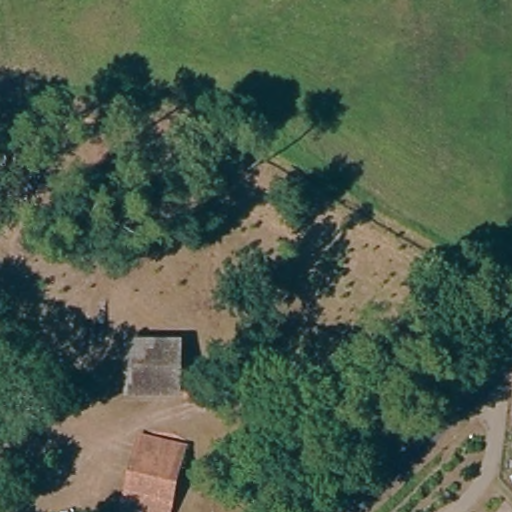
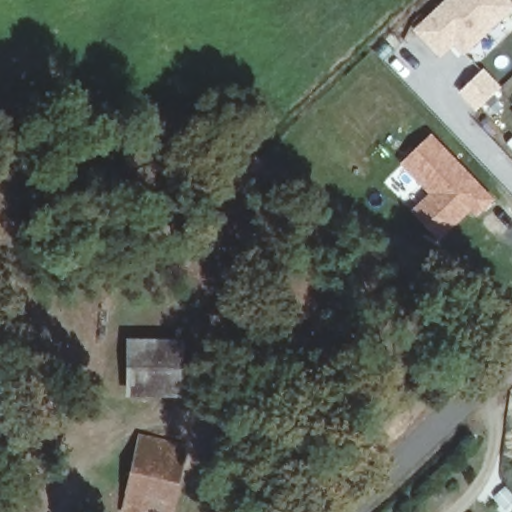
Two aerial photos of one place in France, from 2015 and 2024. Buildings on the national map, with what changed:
new [(512,8),(464,55),(454,45),(439,59),(411,31),(444,0),(510,0),(512,2),(512,8)]
new [(482,68),(500,87),(474,112),(456,93),(482,68)]
new [(495,201),(474,220),(469,214),(438,240),(409,212),(427,195),(399,165),(432,134),(495,201)]
unchanged [(136,343),(185,344),(185,395),(136,394),(136,343)]
unchanged [(186,448),(171,512),(127,512),(143,437),(186,448)]
unchanged [(3,465),(62,474),(59,494),(1,485),(3,465)]

